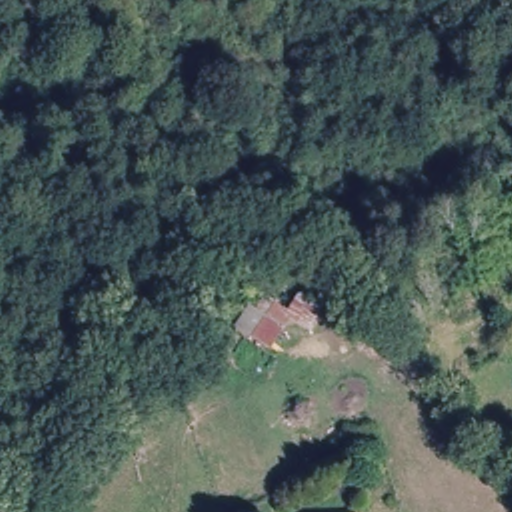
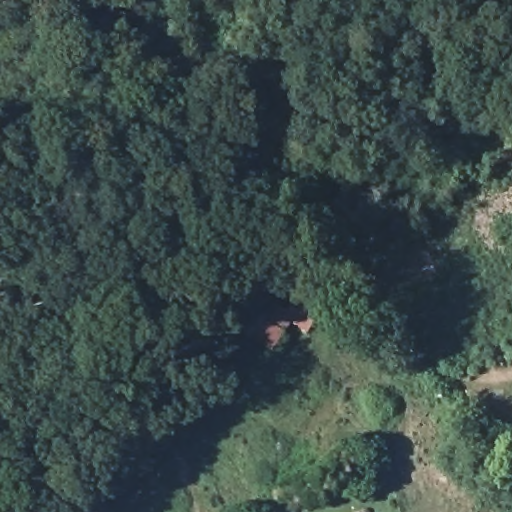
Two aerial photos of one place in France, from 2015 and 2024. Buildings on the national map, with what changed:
unchanged [(272,301),(286,310),(297,295),(315,283),(333,310),(306,335),(292,321),(267,350),(250,339),(272,301)]

